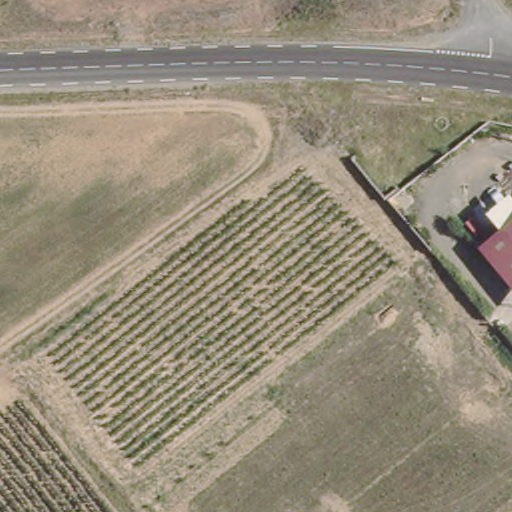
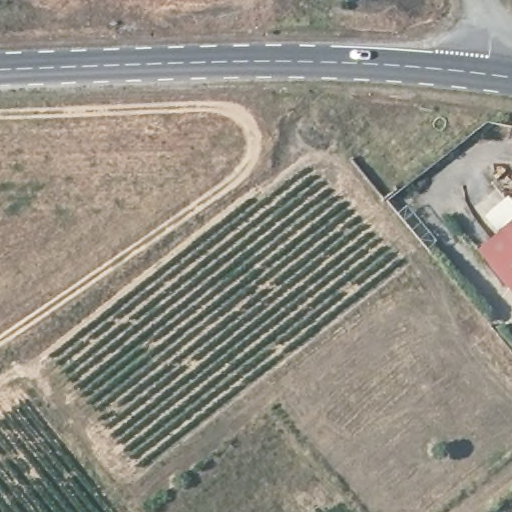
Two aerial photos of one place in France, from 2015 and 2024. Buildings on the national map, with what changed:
unchanged [(512,248),(498,229),(512,219),(512,248)]
unchanged [(512,248),(512,299),(473,248),(498,229),(512,248)]

